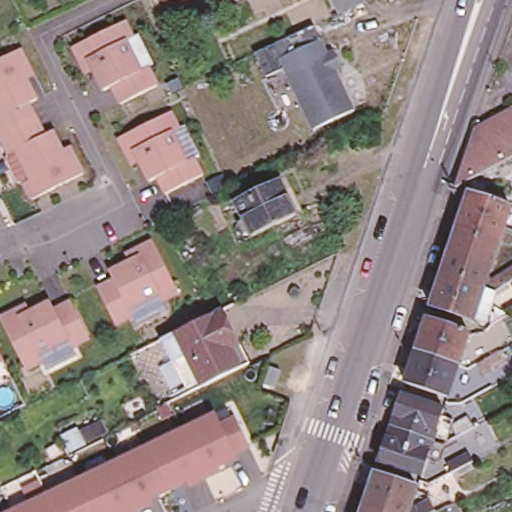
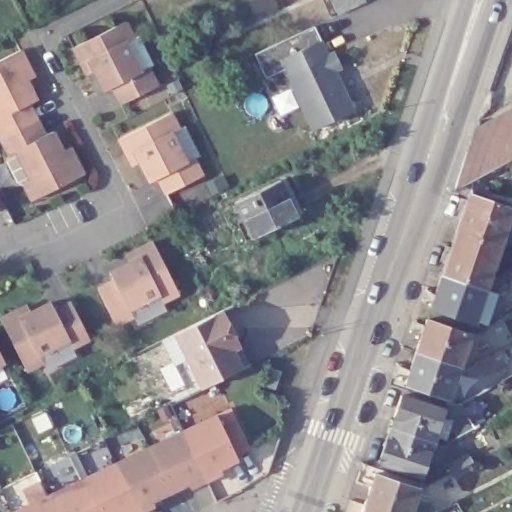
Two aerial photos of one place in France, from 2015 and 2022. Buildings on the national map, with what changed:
unchanged [(333,2),(332,0),(365,0),(366,2),(339,15),(333,2)]
unchanged [(80,64),(73,47),(124,22),(133,39),(125,42),(140,71),(148,67),(156,86),(120,104),(111,87),(103,91),(93,72),(86,75),(80,64)]
unchanged [(314,36),(321,51),(281,70),(285,79),(266,87),(254,64),(314,36)]
unchanged [(28,77),(21,81),(31,100),(23,104),(31,120),(0,136),(0,57),(14,50),(23,67),(28,77)]
unchanged [(321,51),(328,65),(335,62),(343,77),(336,81),(356,120),(315,139),(296,101),(285,79),(281,70),(321,51)]
unchanged [(470,118),(512,96),(512,151),(448,185),(470,118)]
unchanged [(126,155),(118,139),(171,112),(178,129),(184,126),(199,156),(193,159),(201,176),(166,194),(157,177),(149,182),(139,162),(131,166),(126,155)]
unchanged [(0,136),(31,120),(39,135),(47,131),(57,151),(64,147),(69,157),(78,174),(26,201),(18,184),(13,182),(1,160),(3,155),(0,148),(0,136)]
unchanged [(248,230),(231,196),(282,171),(291,189),(285,192),(293,207),(248,230)]
unchanged [(453,223),(464,189),(505,203),(495,237),(453,223)]
unchanged [(469,311),(468,316),(426,302),(437,268),(453,223),(495,237),(479,284),(489,287),(484,302),(489,303),(483,316),(469,311)]
unchanged [(133,321),(128,312),(110,320),(93,283),(108,276),(104,267),(123,257),(120,251),(131,245),(147,237),(173,288),(157,297),(162,305),(133,321)]
unchanged [(47,376),(43,367),(25,376),(0,323),(16,316),(27,310),(30,317),(50,307),(55,316),(70,307),(89,343),(72,352),(76,361),(47,376)]
unchanged [(159,338),(213,311),(223,307),(249,360),(240,364),(186,391),(183,385),(170,359),(159,338)]
unchanged [(410,347),(423,313),(464,329),(453,361),(410,347)]
unchanged [(453,361),(443,392),(400,379),(410,347),(453,361)]
unchanged [(0,360),(0,348),(4,357),(0,360)]
unchanged [(279,370),(274,388),(264,385),(269,367),(279,370)]
unchanged [(385,424),(396,391),(439,406),(428,437),(385,424)]
unchanged [(221,418),(235,412),(249,442),(235,448),(237,453),(218,462),(221,467),(206,474),(189,441),(182,426),(216,408),(221,418)]
unchanged [(428,437),(417,471),(374,457),(385,424),(428,437)]
unchanged [(182,426),(189,441),(206,474),(191,482),(188,477),(169,486),(148,442),(182,426)]
unchanged [(148,442),(169,486),(151,495),(153,499),(138,507),(114,458),(148,442)]
unchanged [(452,475),(447,466),(468,455),(472,464),(452,475)]
unchanged [(114,458),(138,507),(126,512),(122,512),(121,510),(116,512),(99,512),(81,474),(114,458)]
unchanged [(359,502),(369,470),(412,483),(409,491),(423,498),(428,511),(425,512),(356,512),(359,502)]
unchanged [(81,474),(99,512),(57,512),(53,502),(47,491),(81,474)]
unchanged [(47,491),(53,502),(57,512),(16,512),(13,507),(47,491)]
unchanged [(13,507),(16,512),(3,512),(13,507)]

